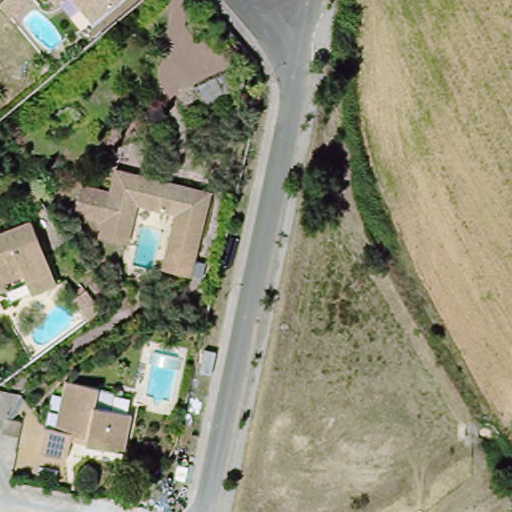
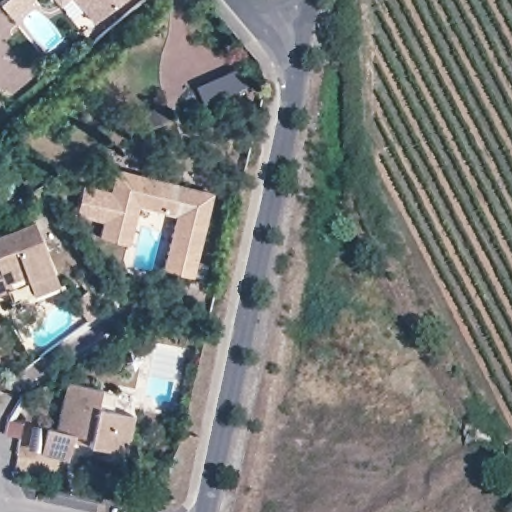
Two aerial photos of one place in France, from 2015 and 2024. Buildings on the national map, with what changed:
unchanged [(0,1),(0,0),(26,0),(10,12),(0,1)]
unchanged [(58,0),(51,6),(47,0),(58,0)]
unchanged [(67,0),(119,0),(88,26),(67,0)]
unchanged [(171,269),(183,215),(142,207),(134,247),(101,240),(106,221),(114,185),(118,170),(127,172),(158,179),(203,188),(214,190),(202,241),(195,276),(171,269)]
unchanged [(114,185),(106,221),(77,215),(84,180),(114,185)]
unchanged [(37,290),(32,278),(30,273),(6,285),(0,288),(0,229),(29,215),(56,266),(62,278),(37,290)]
unchanged [(81,313),(66,293),(80,285),(95,303),(81,313)]
unchanged [(66,470),(39,467),(44,435),(54,436),(65,390),(98,392),(114,396),(113,411),(131,413),(125,447),(92,442),(72,442),(66,470)]

